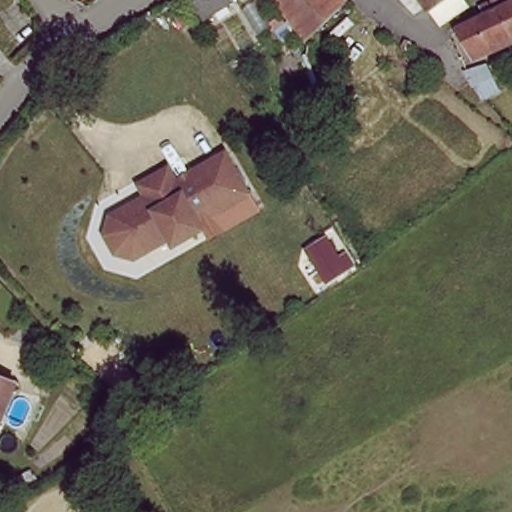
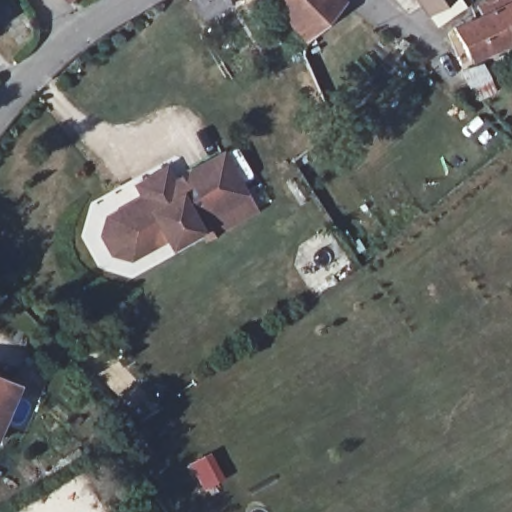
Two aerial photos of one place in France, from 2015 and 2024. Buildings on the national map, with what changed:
unchanged [(194,14),(184,0),(223,0),(223,1),(194,14)]
unchanged [(271,0),(333,0),(297,37),(271,0)]
unchanged [(421,9),(420,9),(414,0),(456,0),(458,4),(431,23),(421,9)]
unchanged [(492,10),(487,0),(512,0),(512,32),(506,34),(465,52),(453,28),(475,18),(492,10)]
unchanged [(460,68),(480,56),(495,84),(476,95),(460,68)]
unchanged [(172,238),(137,258),(119,253),(108,236),(113,217),(148,197),(141,185),(170,168),(177,181),(226,152),(250,192),(201,221),(205,229),(189,239),(177,246),(172,238)]
unchanged [(0,401),(0,377),(9,381),(0,401)]

